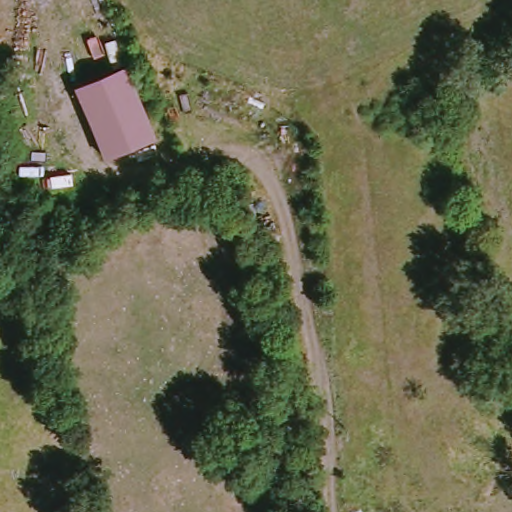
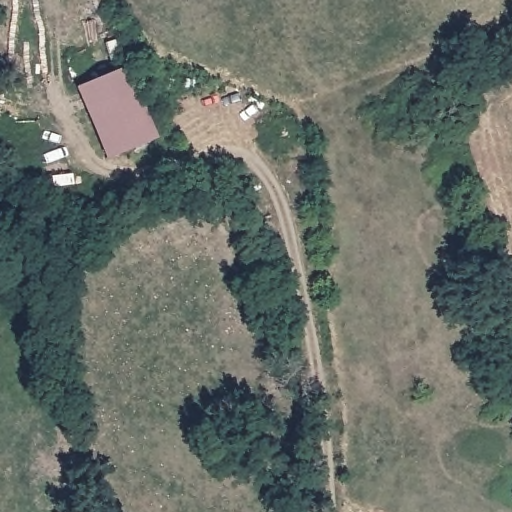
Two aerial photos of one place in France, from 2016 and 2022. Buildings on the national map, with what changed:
unchanged [(155,140),(105,161),(78,90),(128,70),(155,140)]

